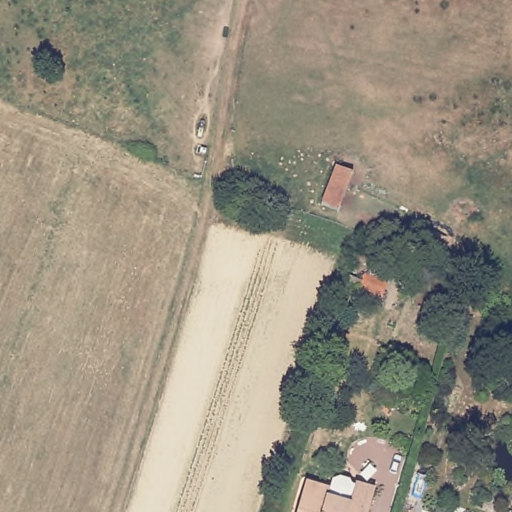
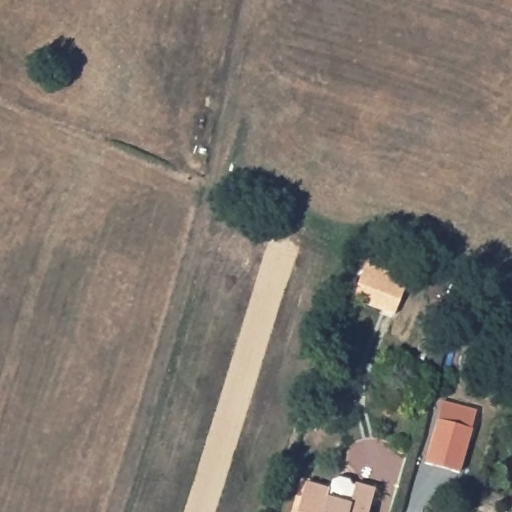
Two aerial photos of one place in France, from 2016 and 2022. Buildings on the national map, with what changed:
unchanged [(345,275),(359,280),(361,274),(384,281),(377,305),(351,293),(346,290),(341,290),(345,275)]
new [(437,420),(442,400),(477,410),(474,429),(463,472),(428,463),(437,420)]
unchanged [(326,487),(328,478),(335,477),(345,480),(349,485),(352,485),(353,483),(373,489),(366,512),(294,512),(302,480),(326,487)]

